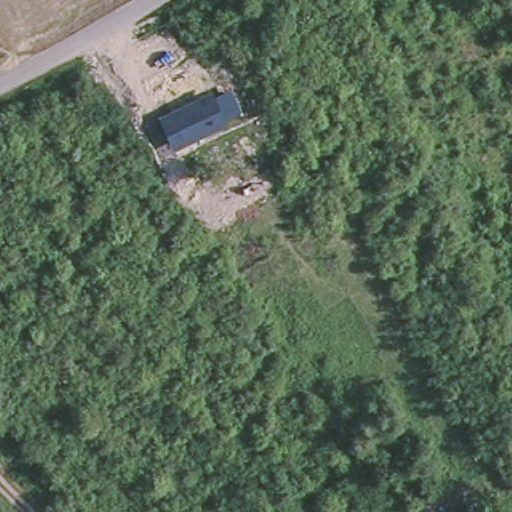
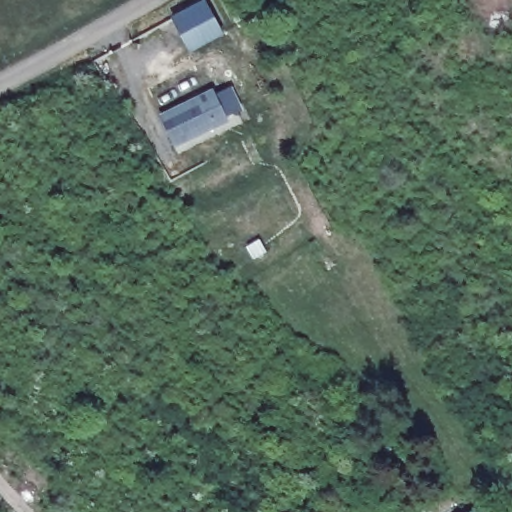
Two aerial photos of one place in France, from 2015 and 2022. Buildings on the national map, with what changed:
new [(223,34),(192,52),(173,18),(206,0),(223,34)]
unchanged [(228,124),(175,147),(160,114),(215,89),(228,124)]
unchanged [(484,512),(476,512),(482,509),(484,512)]

